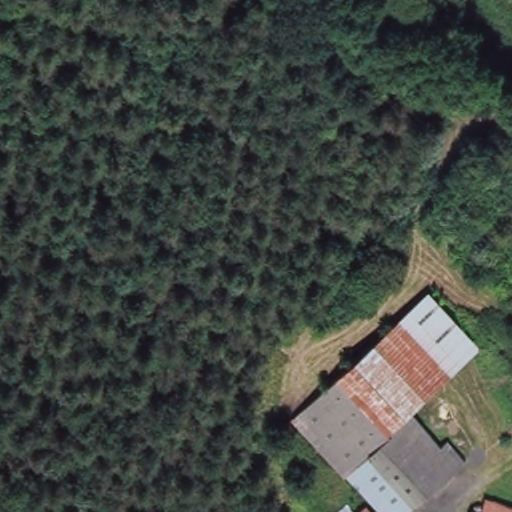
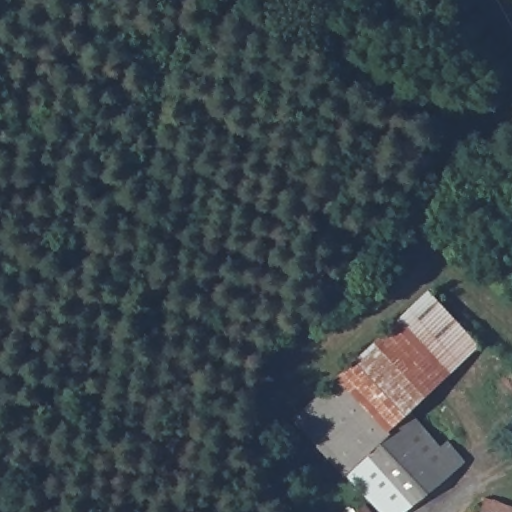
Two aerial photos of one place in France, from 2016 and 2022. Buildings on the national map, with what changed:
unchanged [(430,292),(478,347),(408,412),(387,432),(337,376),(430,292)]
unchanged [(337,376),(387,432),(408,412),(437,447),(445,440),(464,462),(403,512),(381,512),(350,474),(343,478),(301,426),(293,416),(301,408),(337,376)]
unchanged [(482,500),(512,510),(512,512),(479,512),(482,500)]
unchanged [(371,512),(355,512),(365,505),(371,512)]

